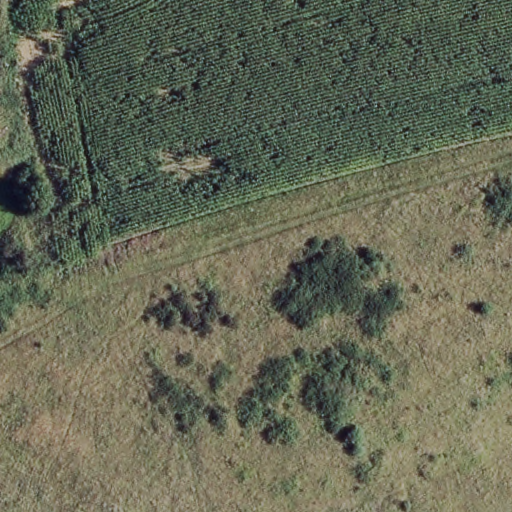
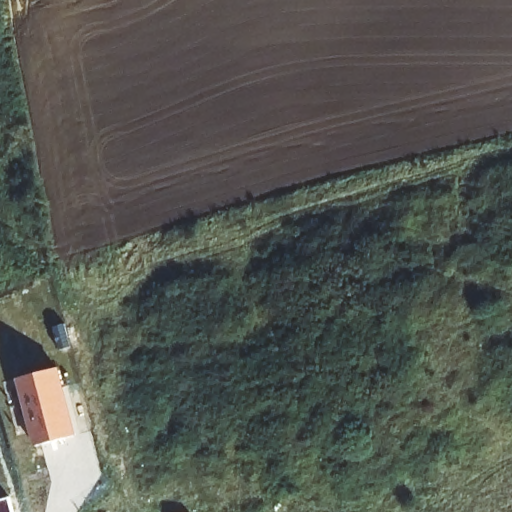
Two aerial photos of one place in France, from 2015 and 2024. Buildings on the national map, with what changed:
new [(77,436),(34,447),(16,382),(59,370),(77,436)]
new [(9,498),(13,512),(0,512),(0,500),(9,498)]

